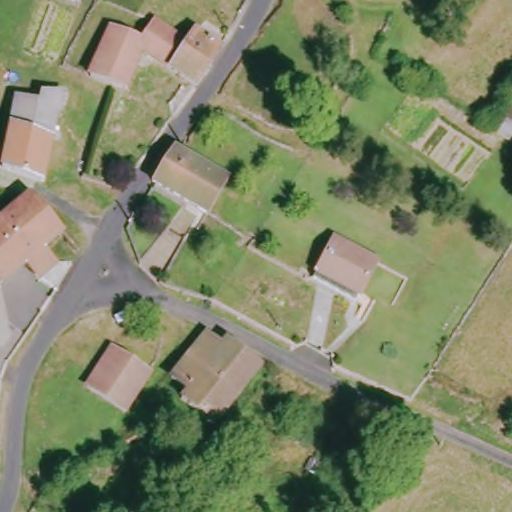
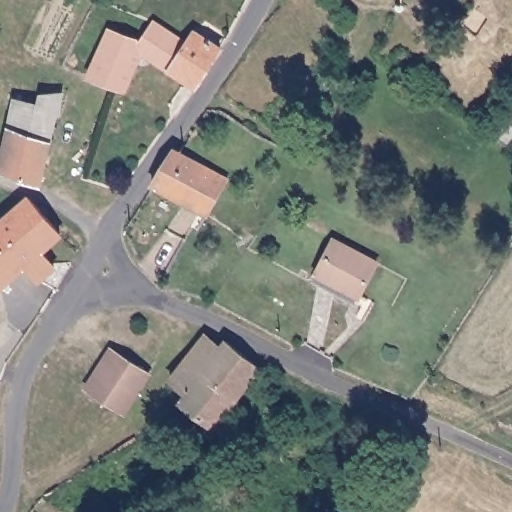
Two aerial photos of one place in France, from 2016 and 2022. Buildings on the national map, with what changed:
unchanged [(101,31),(135,42),(148,22),(180,41),(187,32),(211,46),(187,83),(134,54),(118,90),(102,86),(80,77),(101,31)]
unchanged [(9,98),(31,103),(33,92),(57,91),(56,110),(51,111),(37,180),(33,181),(0,169),(0,158),(9,98)]
unchanged [(168,151),(176,154),(222,179),(202,212),(149,183),(168,151)]
unchanged [(32,283),(18,268),(0,284),(0,221),(23,201),(55,236),(33,255),(47,271),(32,283)]
unchanged [(315,273),(332,241),(374,268),(360,298),(315,273)]
unchanged [(258,375),(214,431),(178,403),(185,393),(166,381),(200,339),(216,353),(225,345),(258,375)]
unchanged [(138,372),(118,412),(87,398),(105,358),(138,372)]

